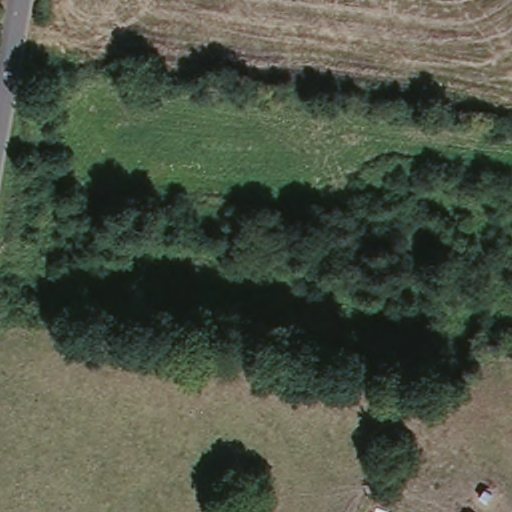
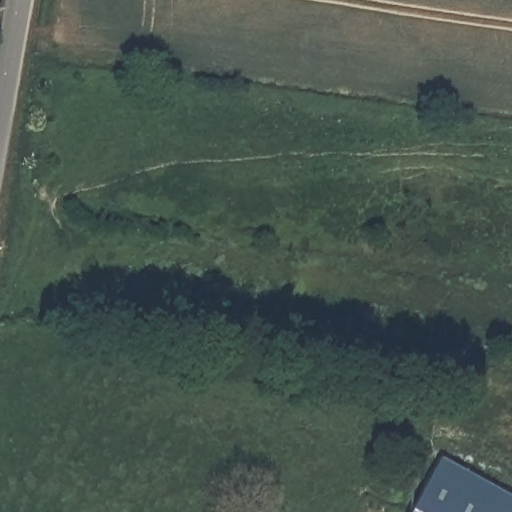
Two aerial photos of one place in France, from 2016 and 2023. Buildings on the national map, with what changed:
new [(512,497),(512,512),(409,512),(439,455),(512,497)]

